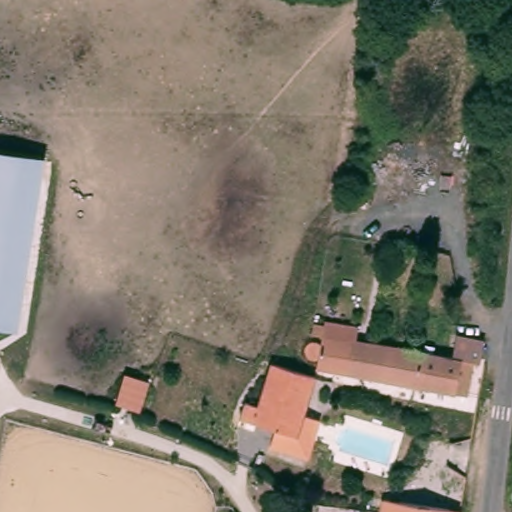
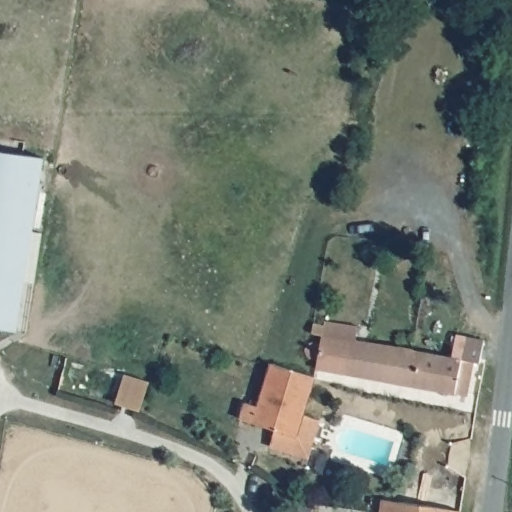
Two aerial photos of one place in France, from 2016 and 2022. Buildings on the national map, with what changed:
unchanged [(0,326),(0,149),(42,156),(17,329),(0,326)]
unchanged [(317,368),(320,358),(316,359),(315,359),(312,358),(310,357),(308,355),(307,353),(307,351),(307,349),(307,347),(308,345),(310,344),(311,343),(313,342),(316,342),(318,342),(320,343),(322,344),(323,334),(314,333),(315,323),(325,324),(326,320),(360,327),(357,341),(405,350),(453,358),(457,335),(485,340),(480,364),(475,363),(467,396),(317,368)]
unchanged [(275,429),(240,419),(245,402),(258,406),(271,363),(315,376),(303,414),(320,419),(314,442),(308,459),(270,447),(275,429)]
unchanged [(382,499),(461,511),(461,512),(381,512),(382,499)]

